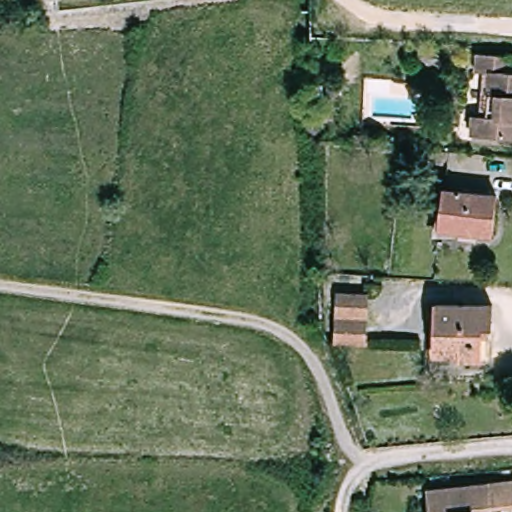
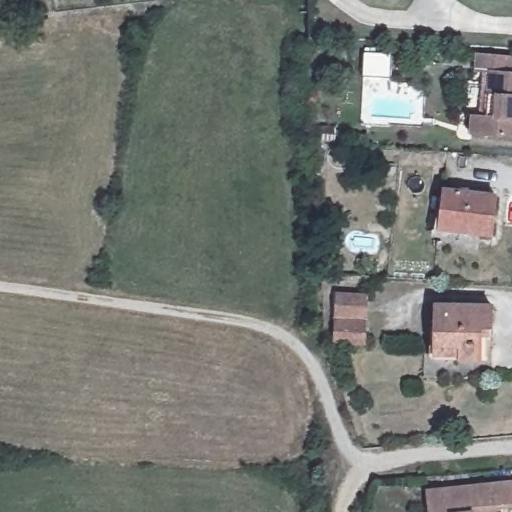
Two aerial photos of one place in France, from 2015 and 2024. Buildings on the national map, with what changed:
unchanged [(489,117),(492,73),(480,72),(482,54),(512,57),(512,138),(496,137),(488,136),(476,135),(477,116),(489,117)]
unchanged [(351,145),(353,136),(367,137),(366,147),(351,145)]
unchanged [(496,196),(491,236),(441,231),(445,191),(496,196)]
unchanged [(336,292),(369,296),(365,346),(334,343),(336,292)]
unchanged [(459,363),(459,357),(433,355),(435,305),(493,307),(493,329),(492,338),(483,337),(482,364),(459,363)]
unchanged [(512,483),(512,510),(508,511),(508,512),(433,512),(431,491),(512,483)]

